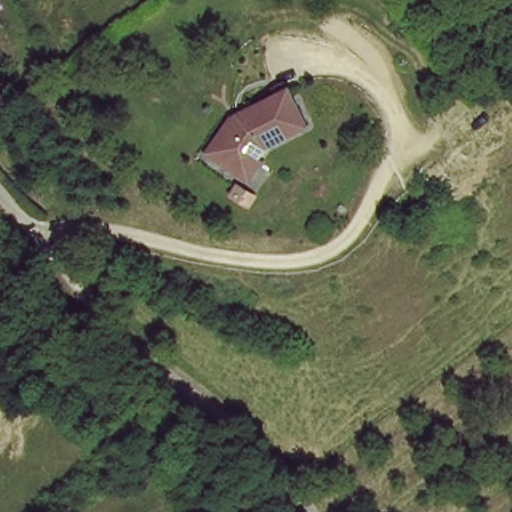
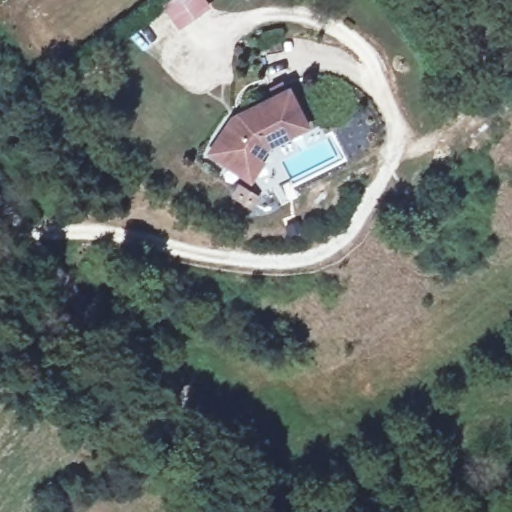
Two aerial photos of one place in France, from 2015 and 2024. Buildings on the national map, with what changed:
new [(205,0),(211,9),(178,31),(160,5),(167,0),(205,0)]
unchanged [(307,127),(265,145),(242,171),(210,142),(234,114),(291,90),(307,127)]

